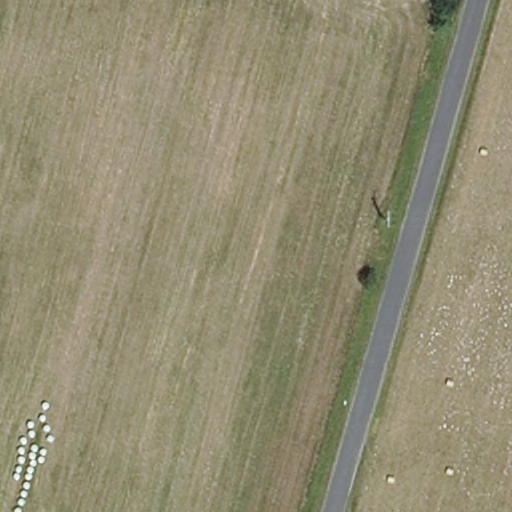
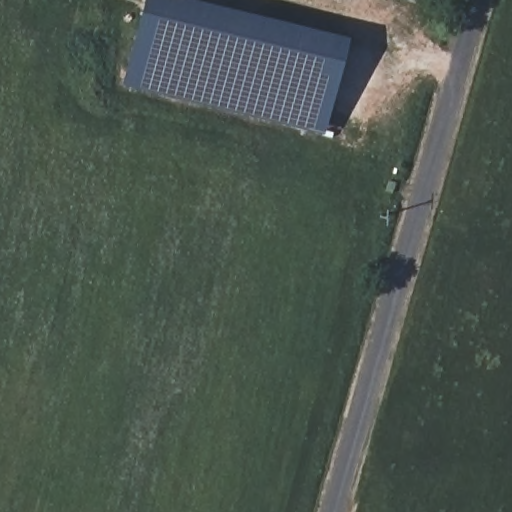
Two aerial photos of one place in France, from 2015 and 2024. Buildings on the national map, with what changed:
new [(123,84),(144,0),(195,0),(348,37),(323,133),(123,84)]

